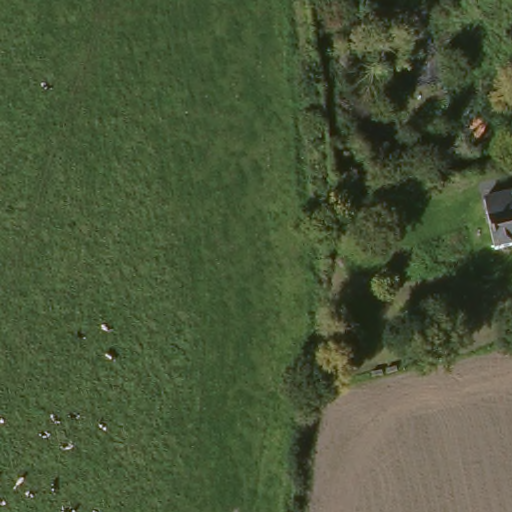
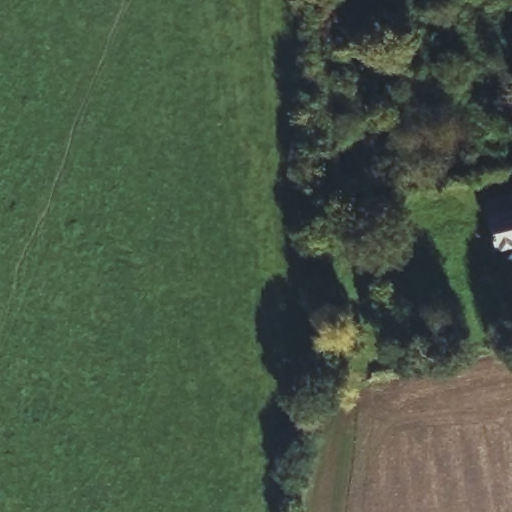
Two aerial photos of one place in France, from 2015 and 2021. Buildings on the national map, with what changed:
unchanged [(511,174),(512,174),(512,201),(484,207),(481,182),(511,174)]
unchanged [(487,263),(474,209),(484,207),(512,201),(512,257),(487,263)]

